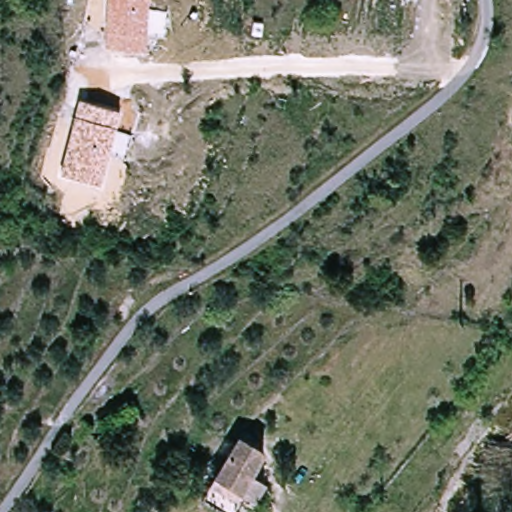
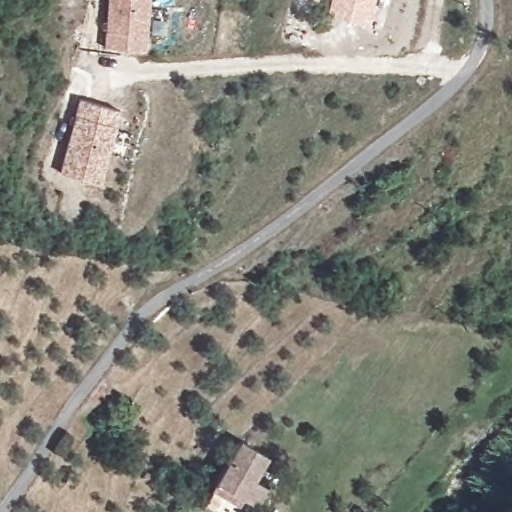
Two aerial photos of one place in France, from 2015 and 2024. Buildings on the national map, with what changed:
unchanged [(147,52),(104,48),(108,0),(149,0),(147,52)]
new [(368,24),(328,11),(331,0),(375,0),(368,24)]
unchanged [(99,185),(60,175),(78,101),(120,111),(99,185)]
unchanged [(270,447),(256,477),(263,480),(257,493),(252,490),(242,512),(223,512),(207,504),(242,434),(270,447)]

